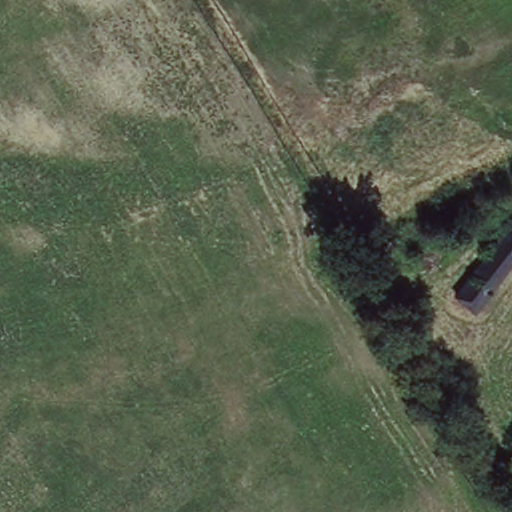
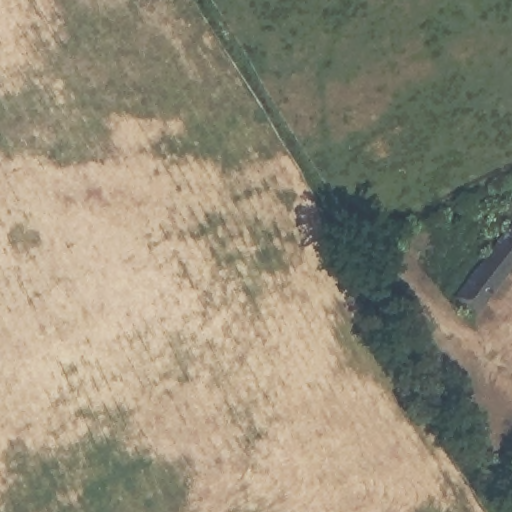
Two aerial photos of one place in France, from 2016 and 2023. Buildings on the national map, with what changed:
unchanged [(512,254),(468,306),(448,293),(512,217),(512,254)]

